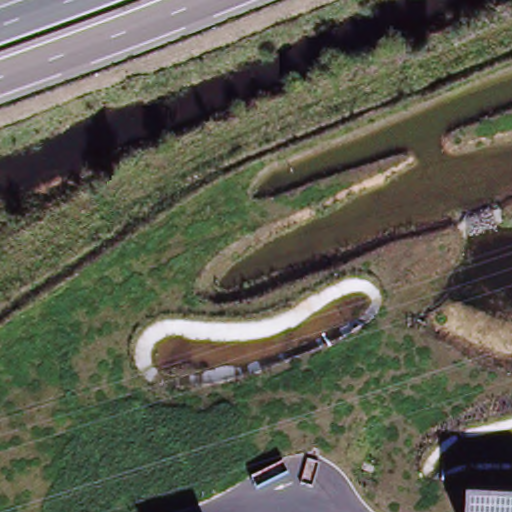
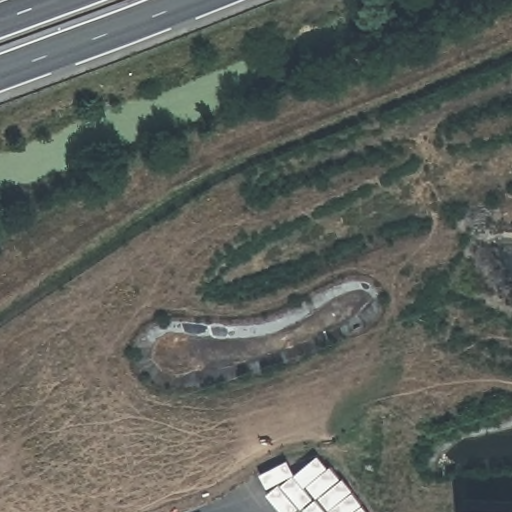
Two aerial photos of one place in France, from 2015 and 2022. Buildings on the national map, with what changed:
unchanged [(512,498),(512,512),(466,512),(466,496),(512,498)]

